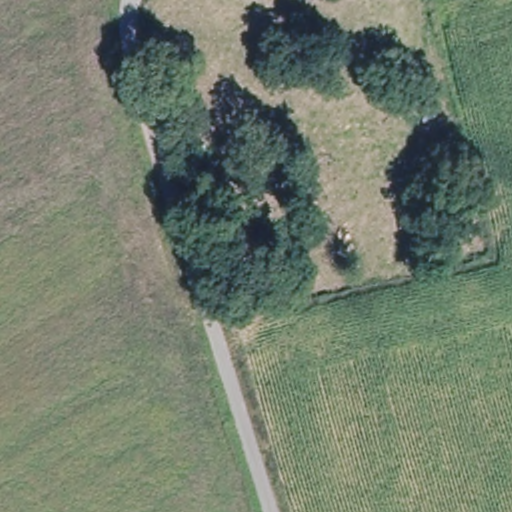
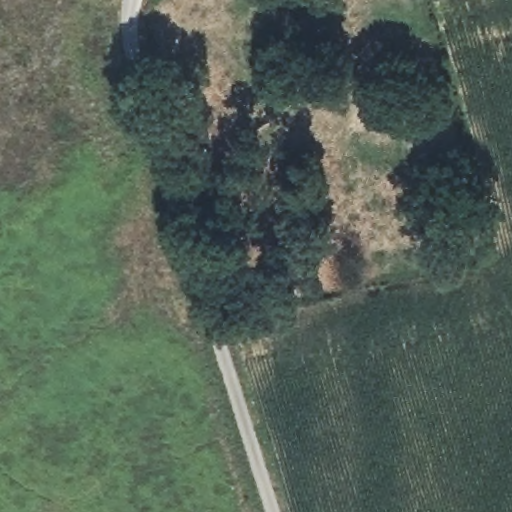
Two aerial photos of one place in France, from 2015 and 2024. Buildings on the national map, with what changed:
unchanged [(199,187),(186,154),(206,146),(219,180),(199,187)]

